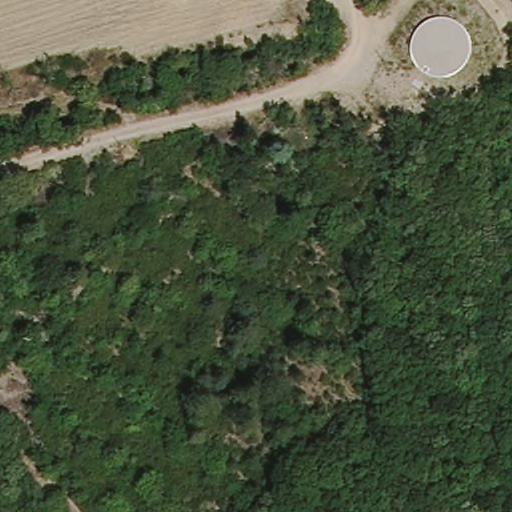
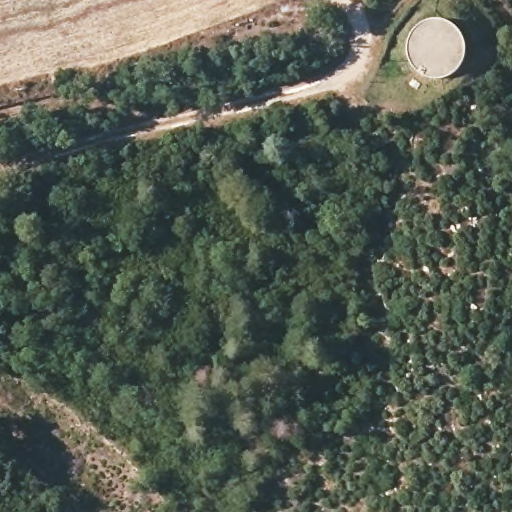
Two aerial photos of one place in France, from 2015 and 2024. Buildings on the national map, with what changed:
[]

